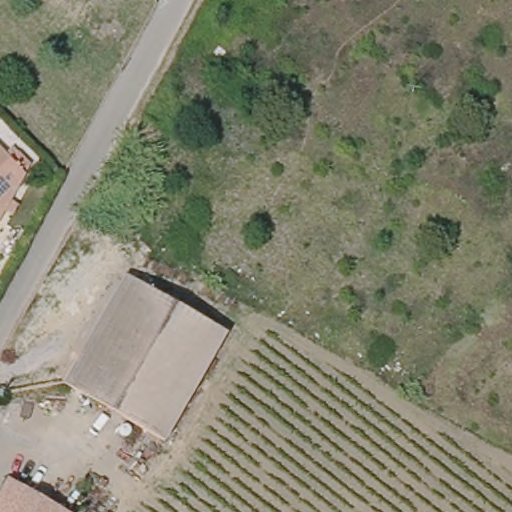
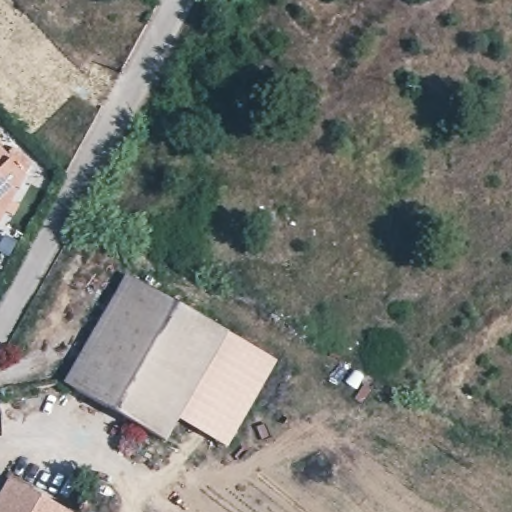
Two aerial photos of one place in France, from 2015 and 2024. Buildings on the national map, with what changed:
unchanged [(8,158),(15,151),(31,168),(26,178),(0,230),(0,150),(8,158)]
unchanged [(227,335),(165,444),(65,387),(127,278),(227,335)]
new [(276,361),(228,448),(178,421),(215,356),(227,335),(276,361)]
unchanged [(62,512),(0,512),(0,500),(10,482),(62,512)]

